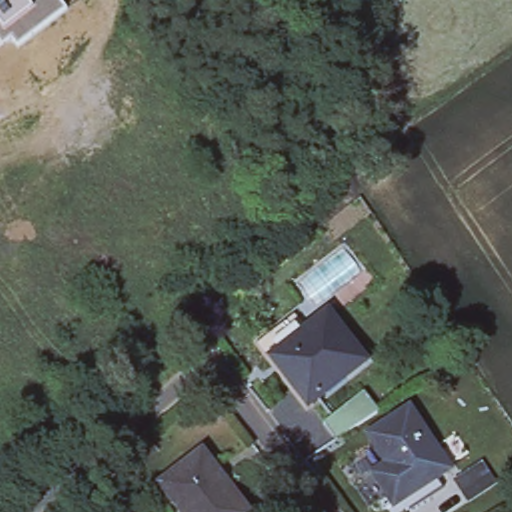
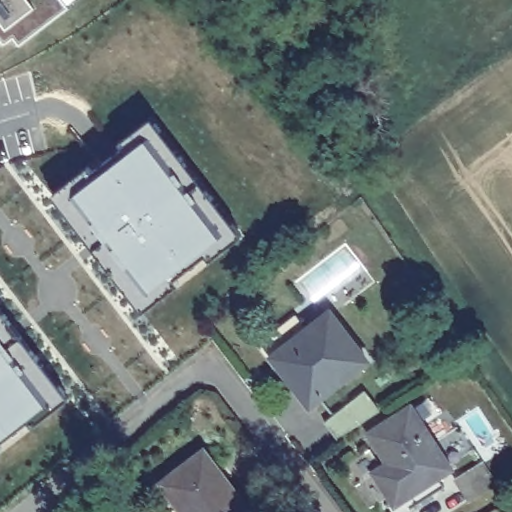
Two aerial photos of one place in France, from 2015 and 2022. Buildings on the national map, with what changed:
unchanged [(18,45),(11,36),(3,43),(0,39),(0,0),(60,0),(67,8),(18,45)]
new [(152,120),(242,236),(208,262),(204,257),(173,279),(178,285),(142,312),(52,196),(152,120)]
new [(70,397),(31,427),(27,422),(0,441),(0,306),(70,397)]
unchanged [(277,361),(265,346),(298,318),(311,333),(332,316),(370,362),(315,407),(277,361)]
unchanged [(336,436),(325,420),(365,391),(377,408),(336,436)]
unchanged [(409,494),(369,432),(407,408),(447,470),(409,494)]
unchanged [(253,512),(190,512),(163,479),(203,446),(256,510),(253,512)]
new [(2,451),(0,452),(0,448),(2,451)]
unchanged [(480,461),(495,483),(464,502),(450,481),(480,461)]

